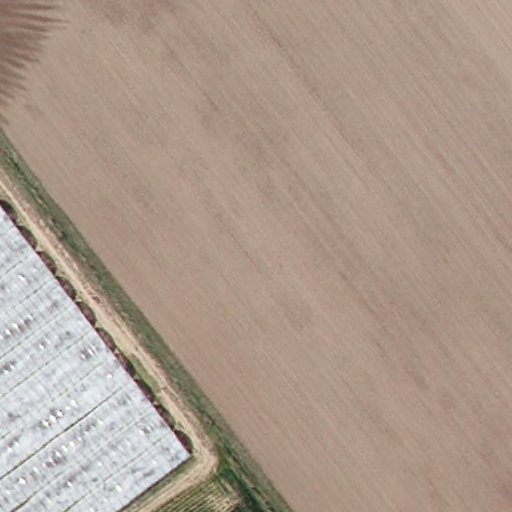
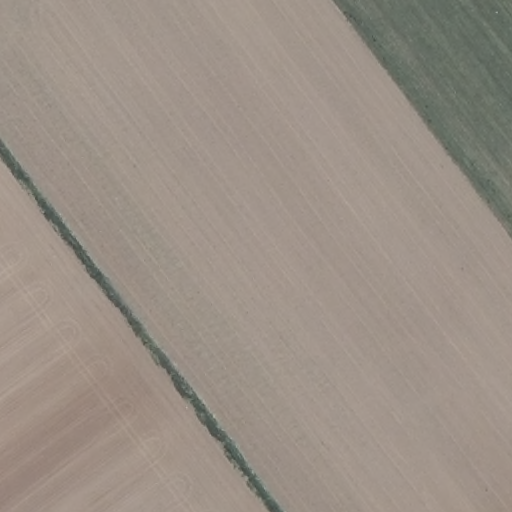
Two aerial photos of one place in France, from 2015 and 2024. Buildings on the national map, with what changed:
new [(114,512),(0,512),(0,206),(189,455),(114,512)]

